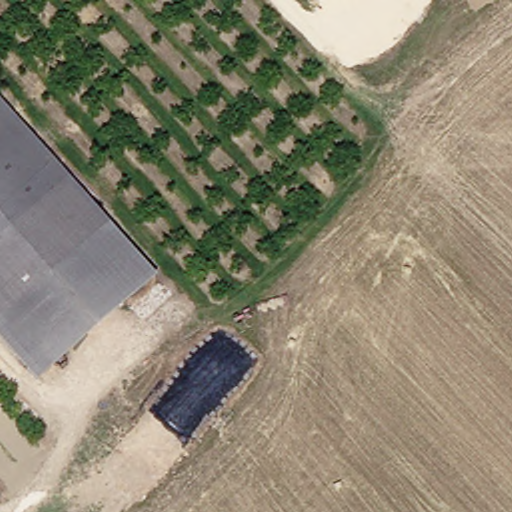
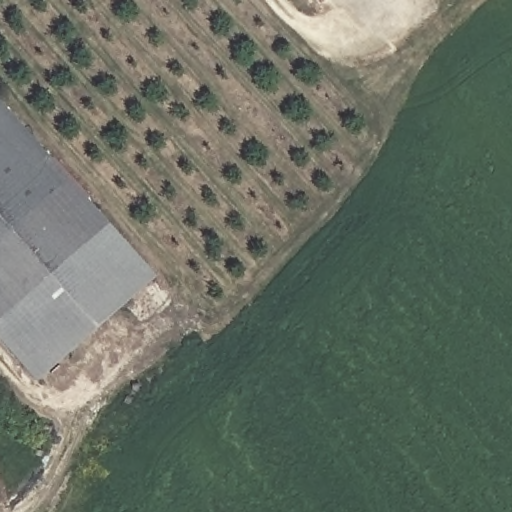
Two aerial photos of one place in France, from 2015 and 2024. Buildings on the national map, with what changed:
unchanged [(342,0),(359,0),(350,9),(342,0)]
unchanged [(0,331),(0,120),(10,110),(163,275),(48,382),(0,331)]

